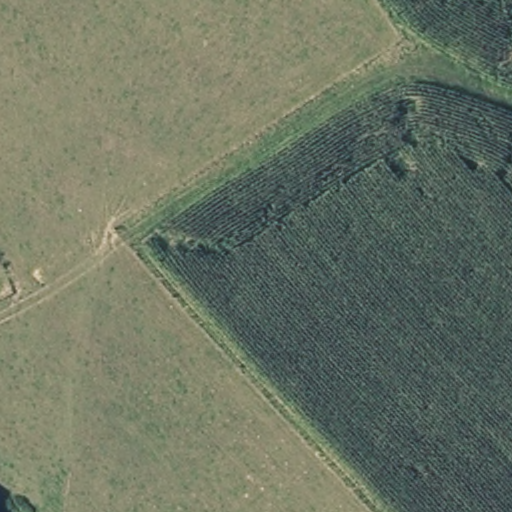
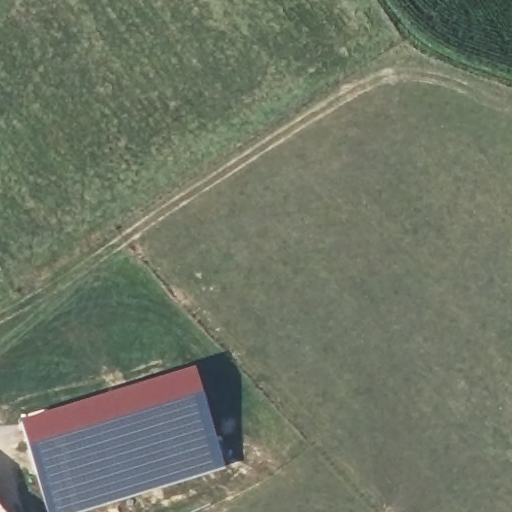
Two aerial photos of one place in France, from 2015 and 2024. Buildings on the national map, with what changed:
new [(224,466),(83,512),(47,512),(17,418),(191,364),(224,466)]
new [(0,508),(4,512),(0,512),(0,508)]

